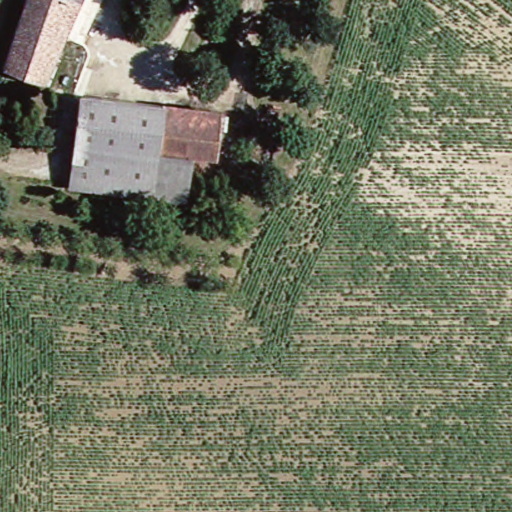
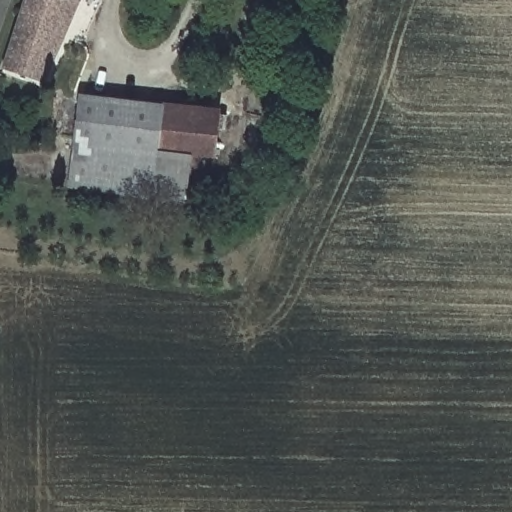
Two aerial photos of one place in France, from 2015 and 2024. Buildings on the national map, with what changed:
unchanged [(0,61),(21,0),(72,0),(37,83),(0,69),(0,61)]
unchanged [(146,144),(141,198),(65,188),(76,99),(152,114),(146,144)]
unchanged [(154,107),(206,110),(203,151),(146,144),(152,114),(154,107)]

